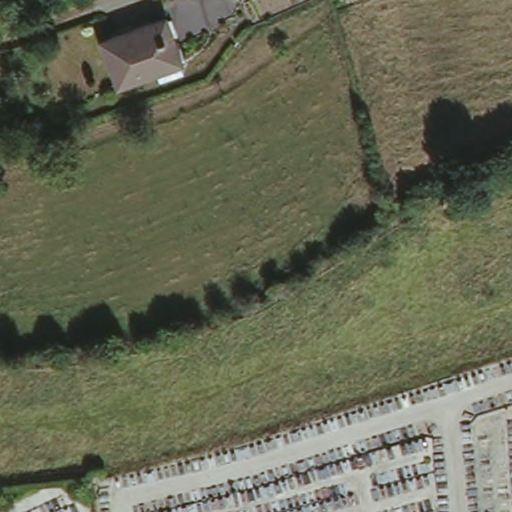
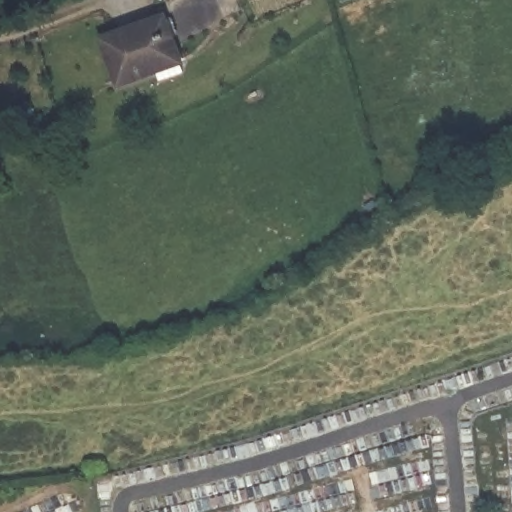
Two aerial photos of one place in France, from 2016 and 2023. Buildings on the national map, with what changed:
unchanged [(158,67),(161,72),(121,87),(104,42),(169,19),(184,59),(158,67)]

